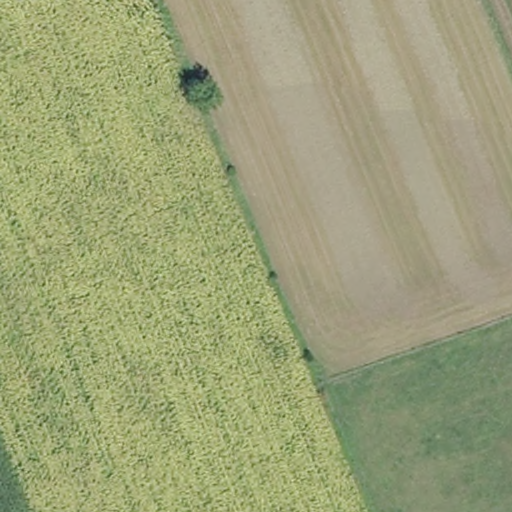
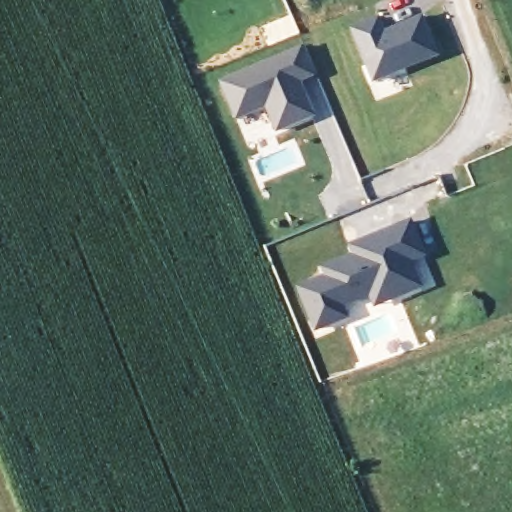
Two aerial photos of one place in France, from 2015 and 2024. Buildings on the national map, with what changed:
new [(377,15),(383,28),(423,12),(441,55),(373,83),(349,24),(377,15)]
new [(315,42),(326,69),(307,76),(313,89),(309,91),(318,112),(286,126),(276,101),(246,113),(231,78),(315,42)]
new [(378,287),(350,299),(355,313),(325,325),(307,284),(335,273),(331,264),(363,251),(360,242),(381,233),(419,218),(432,251),(418,256),(429,282),(407,291),(383,301),(378,287)]

